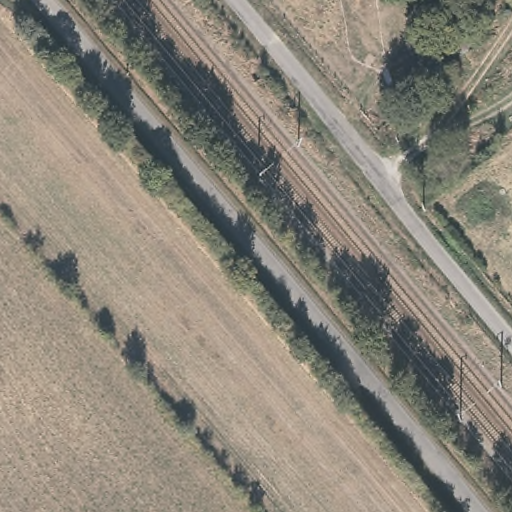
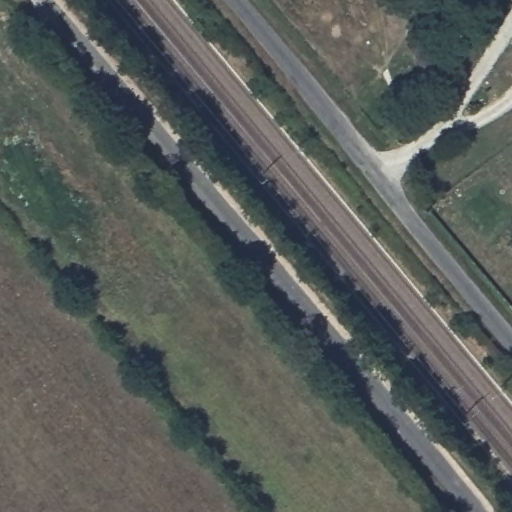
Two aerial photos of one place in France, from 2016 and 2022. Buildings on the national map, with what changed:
unchanged [(471,47),(459,54),(441,23),(454,16),(471,47)]

